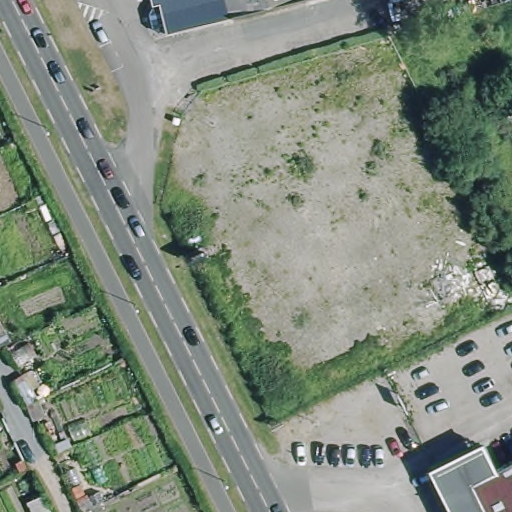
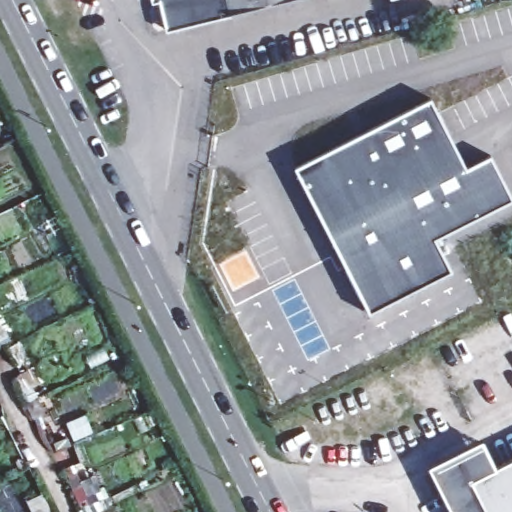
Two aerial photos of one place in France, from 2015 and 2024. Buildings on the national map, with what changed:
unchanged [(155,1),(154,0),(158,0),(155,1)]
unchanged [(168,29),(162,0),(286,0),(168,29)]
new [(425,109),(461,177),(485,164),(508,208),(431,248),(448,279),(366,322),(292,179),(425,109)]
unchanged [(490,444),(500,467),(512,461),(512,512),(460,512),(438,469),(490,444)]

